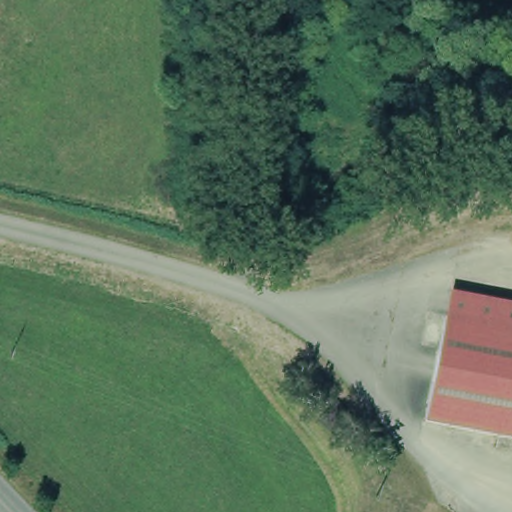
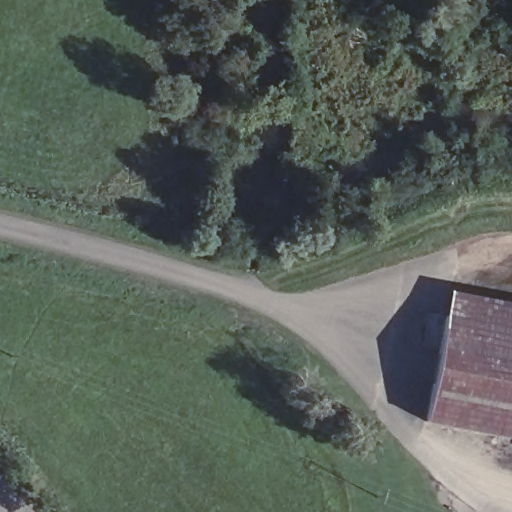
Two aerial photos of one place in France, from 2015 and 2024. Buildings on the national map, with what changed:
unchanged [(512,321),(512,429),(429,412),(450,308),(512,321)]

